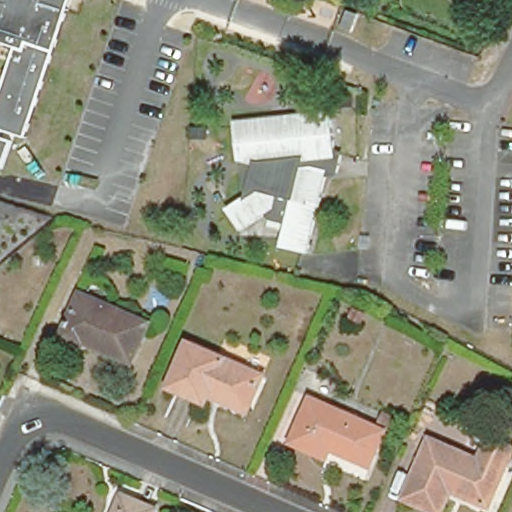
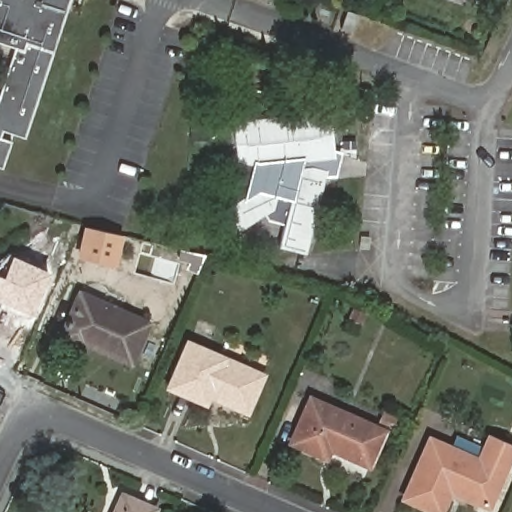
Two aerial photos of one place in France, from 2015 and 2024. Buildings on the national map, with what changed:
unchanged [(12,135),(1,168),(0,168),(0,92),(14,48),(0,44),(0,0),(67,0),(25,140),(12,135)]
unchanged [(337,114),(341,156),(345,157),(341,177),(328,180),(311,259),(282,251),(287,228),(272,224),(269,220),(244,239),(227,215),(246,201),(241,120),(337,114)]
new [(85,229),(119,237),(112,266),(78,258),(85,229)]
new [(1,302),(0,303),(0,274),(3,275),(12,254),(50,272),(30,314),(1,302)]
unchanged [(151,327),(134,366),(87,347),(86,349),(64,340),(82,297),(151,327)]
unchanged [(363,313),(357,327),(345,321),(350,308),(363,313)]
unchanged [(260,375),(244,410),(206,395),(202,402),(167,387),(186,343),(260,375)]
unchanged [(383,431),(366,467),(328,450),(324,457),(289,443),(308,397),(383,431)]
unchanged [(476,461),(487,438),(512,449),(487,506),(450,491),(439,512),(434,512),(404,498),(429,441),(476,461)]
unchanged [(126,495),(159,510),(158,512),(118,512),(126,495)]

